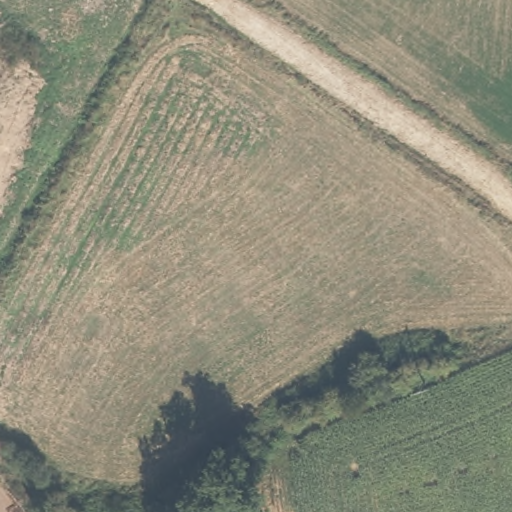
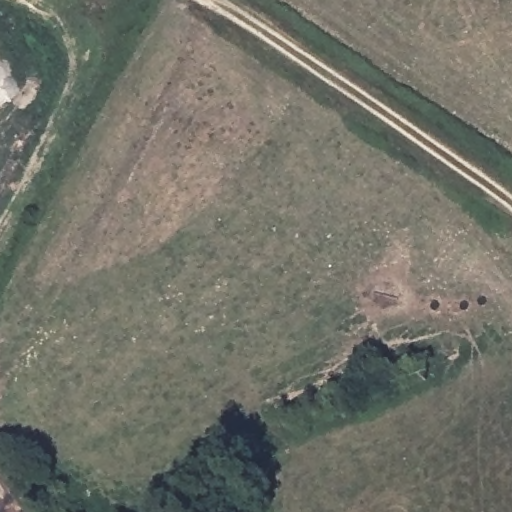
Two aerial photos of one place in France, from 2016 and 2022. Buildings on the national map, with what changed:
[]

